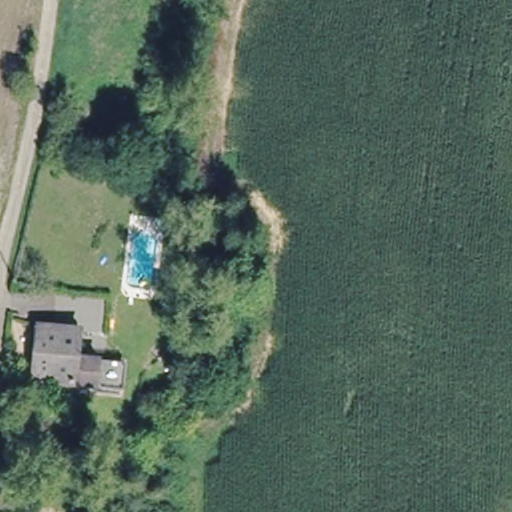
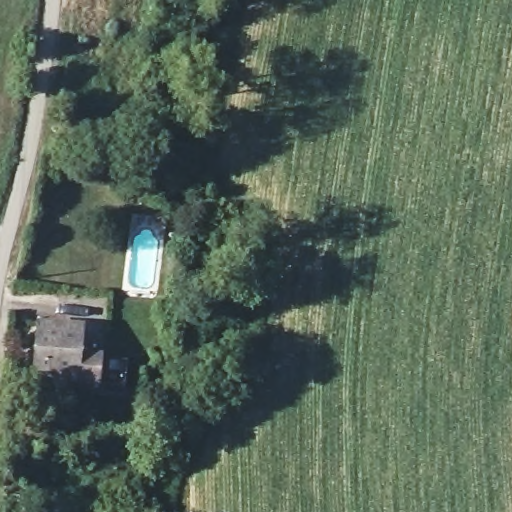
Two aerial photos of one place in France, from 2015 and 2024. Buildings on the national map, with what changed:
unchanged [(42,319),(84,326),(80,352),(101,357),(96,389),(34,376),(42,319)]

